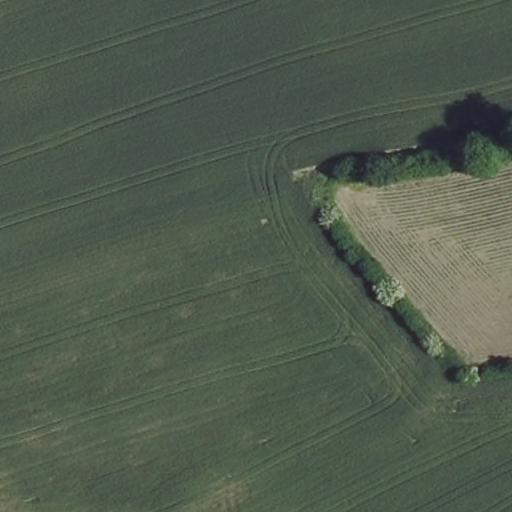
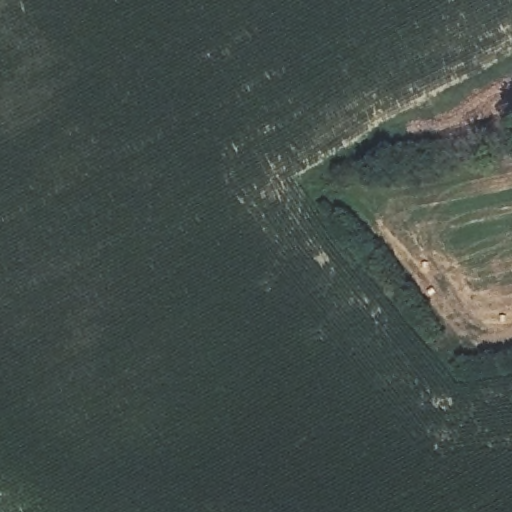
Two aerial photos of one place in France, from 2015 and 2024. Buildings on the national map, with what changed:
[]

